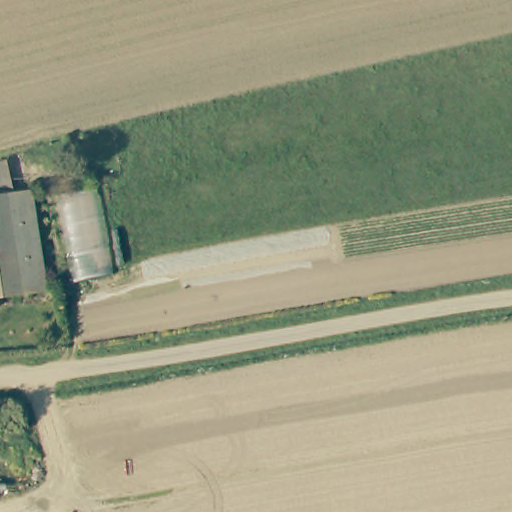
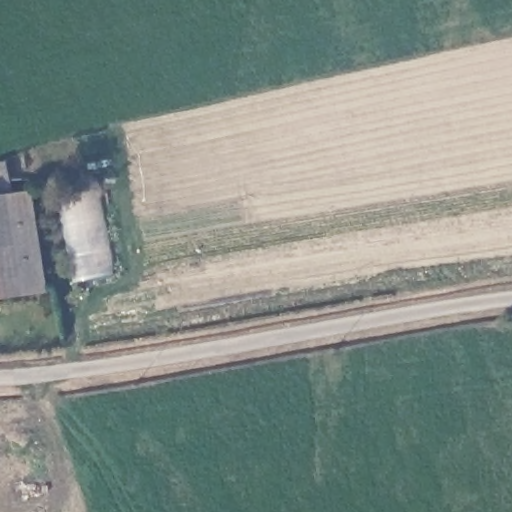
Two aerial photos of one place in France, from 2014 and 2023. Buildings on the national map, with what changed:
unchanged [(27,189),(46,290),(21,295),(5,193),(27,189)]
unchanged [(71,279),(56,195),(97,190),(112,275),(71,279)]
unchanged [(0,194),(5,193),(21,295),(0,298),(0,194)]

